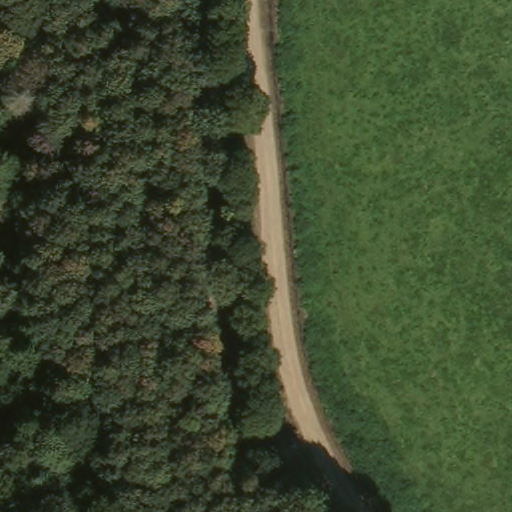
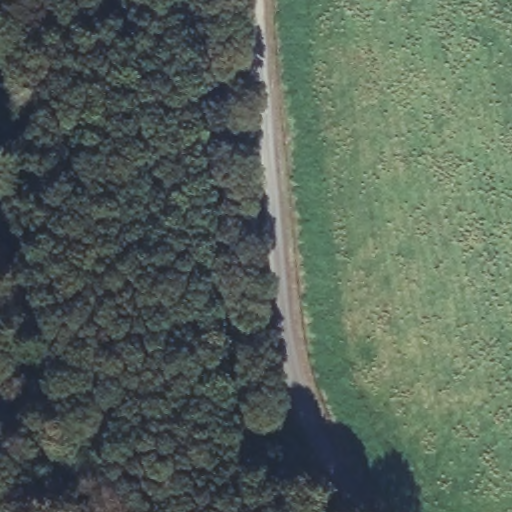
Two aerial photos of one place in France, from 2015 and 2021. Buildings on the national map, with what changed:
[]

